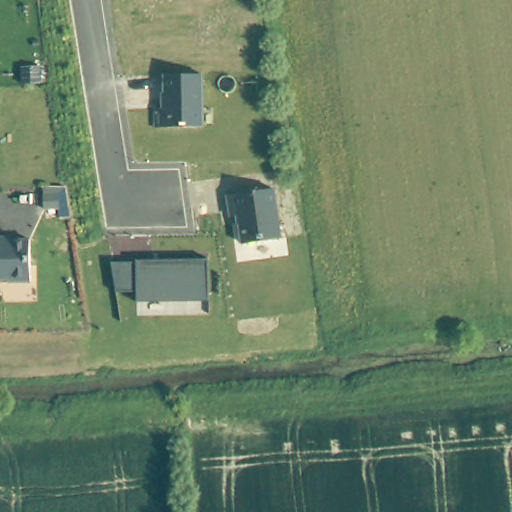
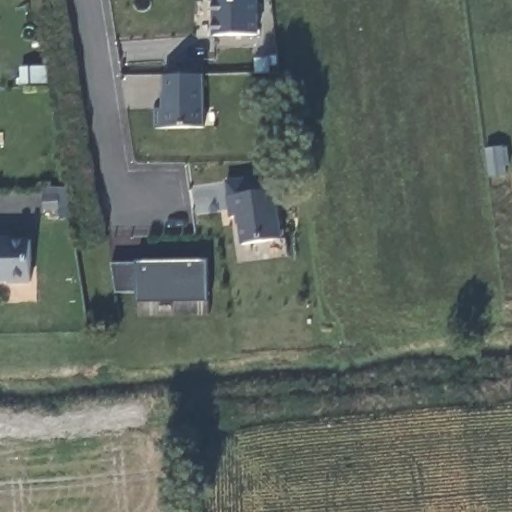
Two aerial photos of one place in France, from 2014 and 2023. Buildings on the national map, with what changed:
new [(258,0),(258,34),(214,34),(215,0),(258,0)]
unchanged [(155,109),(164,109),(164,76),(204,75),(205,126),(155,128),(155,109)]
unchanged [(227,195),(276,189),(282,239),(241,243),(237,215),(230,217),(227,195)]
unchanged [(30,241),(30,283),(8,284),(8,281),(0,281),(0,241),(30,241)]
unchanged [(137,302),(136,291),(116,292),(111,263),(209,260),(210,303),(137,302)]

